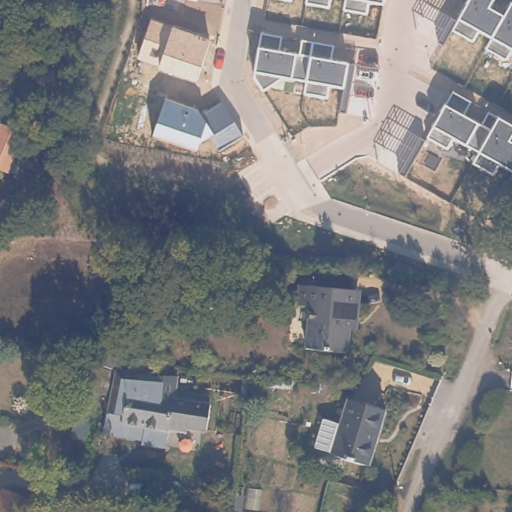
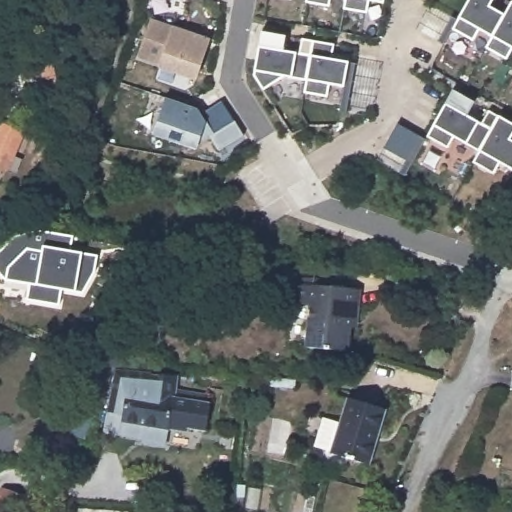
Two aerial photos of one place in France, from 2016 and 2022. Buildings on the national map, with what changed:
unchanged [(291,1),(288,0),(291,0),(291,1)]
unchanged [(330,7),(308,3),(308,0),(330,0),(330,7)]
unchanged [(385,4),(369,1),(368,14),(346,10),(348,0),(385,0),(385,4)]
unchanged [(505,17),(512,4),(512,51),(507,60),(487,49),(495,37),(481,30),(474,41),(454,31),(461,19),(470,0),(494,0),(491,8),(505,17)]
unchanged [(173,27),(214,40),(199,82),(160,69),(139,59),(153,20),(173,27)]
unchanged [(282,37),(280,52),(298,56),(303,39),(337,46),(333,61),(349,63),(344,87),(328,85),(327,97),(306,95),(308,81),(292,79),(283,77),(265,91),(256,72),(260,48),(262,33),(282,37)]
unchanged [(482,125),(490,112),(499,117),(512,124),(512,137),(510,141),(512,142),(512,169),(502,164),(496,176),(475,164),(482,152),(468,145),(456,137),(449,150),(429,137),(435,126),(454,91),(476,104),(468,117),(482,125)]
unchanged [(203,116),(223,102),(245,136),(223,152),(212,136),(203,142),(200,151),(154,136),(167,100),(199,109),(203,116)]
unchanged [(27,133),(11,174),(0,169),(0,123),(27,133)]
new [(28,299),(31,283),(6,279),(0,273),(0,248),(24,228),(75,236),(72,250),(83,252),(98,256),(97,271),(85,293),(76,291),(65,290),(61,305),(28,299)]
unchanged [(356,292),(355,322),(350,322),(347,352),(309,350),(311,308),(298,307),(299,289),(356,292)]
unchanged [(113,368),(106,392),(82,385),(89,361),(113,368)]
unchanged [(175,401),(191,404),(193,396),(209,397),(207,406),(210,407),(206,432),(170,427),(168,432),(122,423),(123,416),(112,415),(106,413),(115,367),(124,370),(151,375),(178,379),(175,401)]
unchanged [(334,451),(317,446),(326,417),(343,422),(351,397),(389,407),(372,464),(334,453),(334,451)]
unchanged [(84,409),(99,415),(87,445),(73,438),(84,409)]
unchanged [(21,512),(0,512),(0,495),(3,491),(26,498),(21,512)]
unchanged [(120,510),(120,512),(29,512),(30,512),(120,510)]

